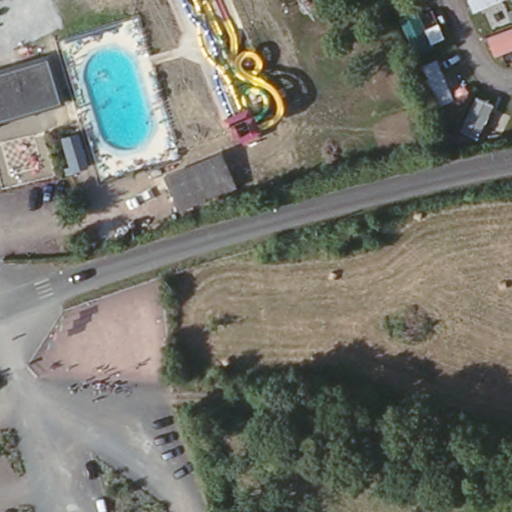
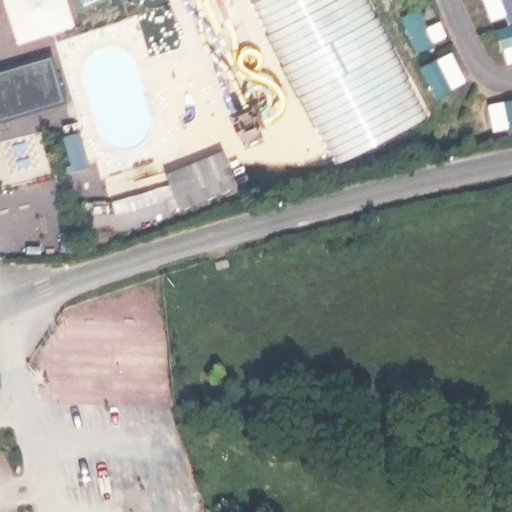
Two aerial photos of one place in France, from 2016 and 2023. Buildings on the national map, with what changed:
new [(256,0),(372,0),(432,108),(340,158),(254,1),(256,0)]
unchanged [(47,59),(61,102),(0,116),(0,71),(47,59)]
demolished [(104,155),(90,161),(76,128),(90,122),(104,155)]
unchanged [(90,165),(68,178),(63,168),(72,163),(61,134),(75,128),(90,165)]
unchanged [(174,187),(169,176),(226,154),(239,187),(203,202),(183,210),(174,187)]
demolished [(148,191),(158,214),(138,222),(129,199),(148,191)]

